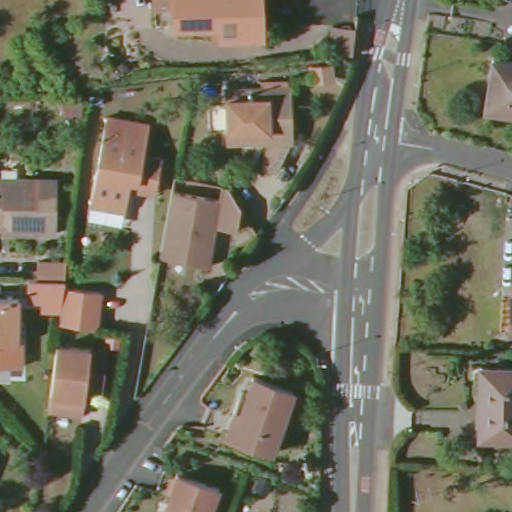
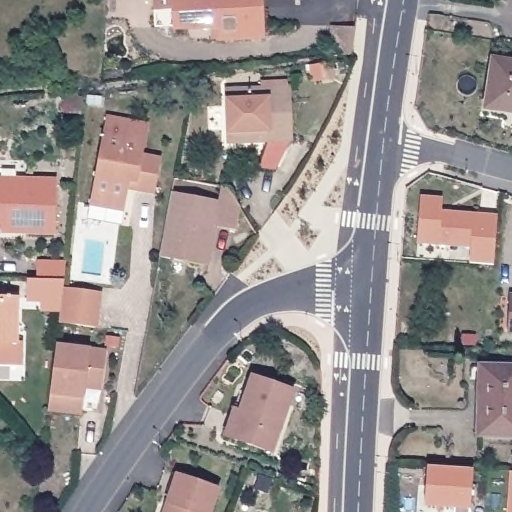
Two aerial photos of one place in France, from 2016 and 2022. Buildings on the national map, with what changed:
unchanged [(262,38),(222,40),(221,27),(178,29),(176,29),(174,0),(260,0),(262,38)]
unchanged [(328,57),(332,25),(355,28),(352,54),(328,57)]
unchanged [(502,112),(502,117),(482,114),(490,64),(512,67),(512,113),(502,112)]
unchanged [(258,167),(267,138),(228,140),(225,87),(282,84),(287,83),(290,136),(275,168),(267,168),(258,167)]
unchanged [(106,115),(148,123),(142,154),(160,157),(154,192),(135,188),(136,181),(129,179),(123,210),(90,204),(106,115)]
unchanged [(53,233),(25,233),(25,229),(0,228),(0,179),(55,180),(53,233)]
unchanged [(203,197),(223,200),(225,184),(232,185),(246,205),(240,229),(220,226),(212,264),(192,261),(203,197)]
unchanged [(175,192),(203,197),(192,261),(164,256),(175,192)]
new [(422,198),(442,199),(442,212),(498,216),(495,265),(472,263),(473,247),(419,243),(422,198)]
unchanged [(65,263),(65,280),(37,280),(37,263),(65,263)]
unchanged [(59,329),(63,290),(100,295),(95,334),(59,329)]
unchanged [(0,298),(18,298),(18,342),(0,342),(0,298)]
unchanged [(511,331),(512,308),(512,331),(511,331)]
unchanged [(106,346),(102,384),(85,382),(82,408),(48,404),(56,340),(106,346)]
unchanged [(480,433),(482,366),(512,367),(512,434),(480,433)]
unchanged [(235,410),(244,413),(257,375),(297,390),(275,454),(237,441),(228,438),(235,410)]
new [(471,509),(470,512),(455,512),(455,509),(425,507),(427,467),(473,470),(471,509)]
new [(512,472),(512,512),(507,512),(510,472),(512,472)]
unchanged [(177,476),(218,490),(210,512),(163,512),(166,505),(177,476)]

